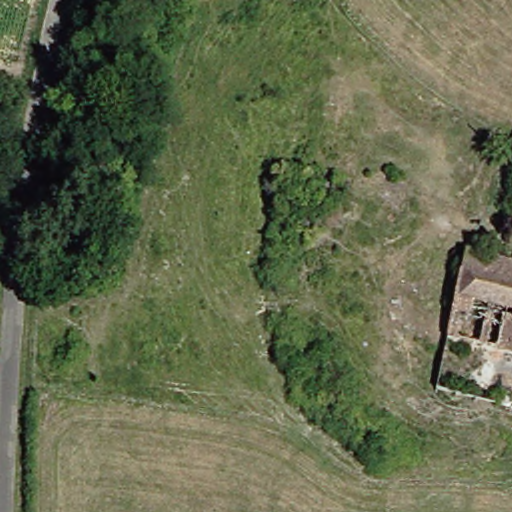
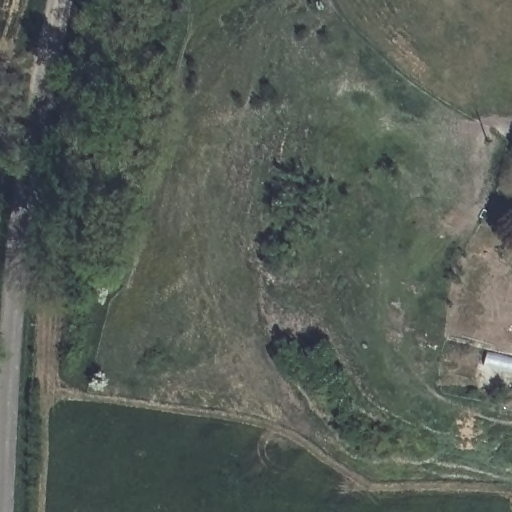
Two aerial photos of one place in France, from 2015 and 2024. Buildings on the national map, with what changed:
unchanged [(470,250),(512,261),(512,349),(507,348),(448,335),(470,250)]
unchanged [(448,335),(507,348),(500,381),(495,399),(435,385),(440,369),(448,335)]

